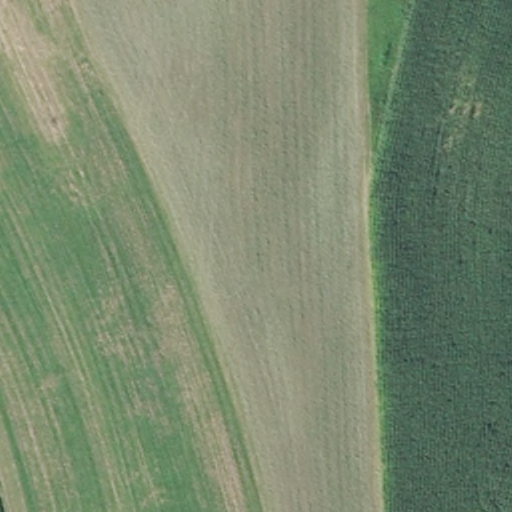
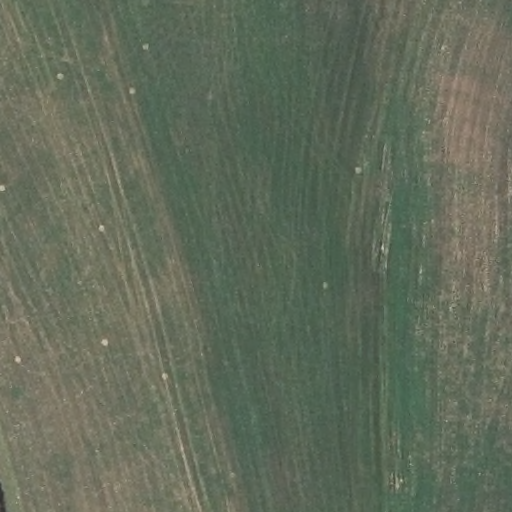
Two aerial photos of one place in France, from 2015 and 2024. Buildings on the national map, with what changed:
[]

